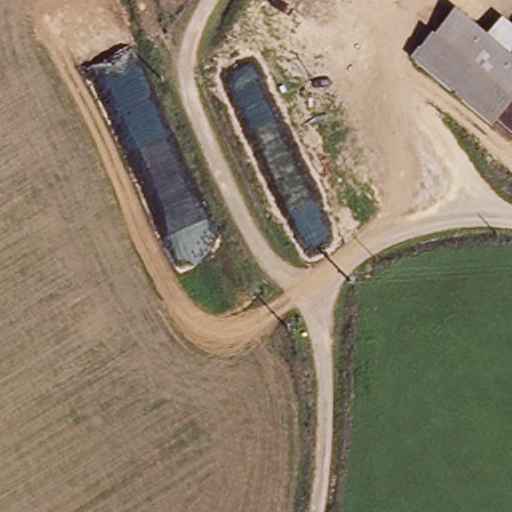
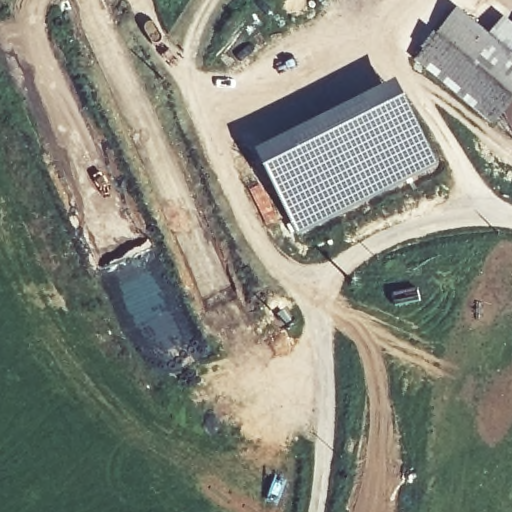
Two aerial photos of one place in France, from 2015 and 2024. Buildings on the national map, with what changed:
unchanged [(504,100),(492,115),(419,55),(459,9),(512,55),(512,107),(504,100)]
new [(396,79),(438,164),(430,170),(296,235),(254,149),(396,79)]

